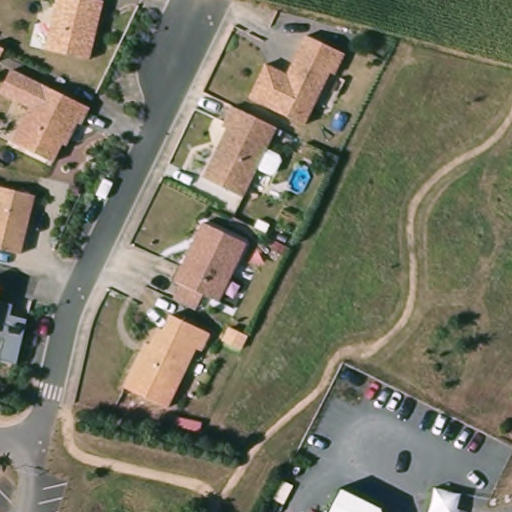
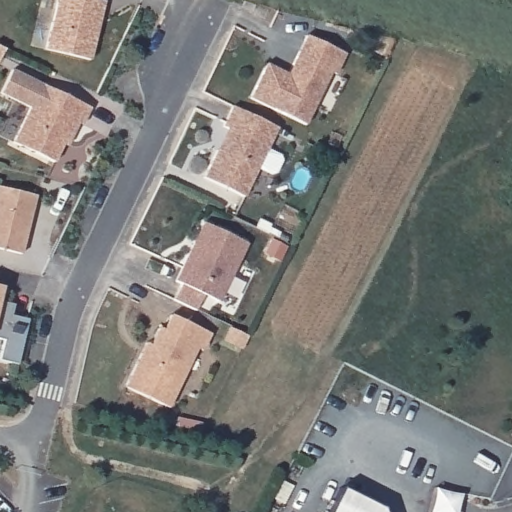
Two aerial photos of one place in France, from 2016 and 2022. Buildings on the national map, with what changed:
unchanged [(100,1),(110,3),(105,23),(95,61),(51,51),(64,0),(100,0),(100,1)]
unchanged [(350,57),(341,77),(336,75),(311,128),(256,100),(272,67),(293,77),(312,39),(350,57)]
unchanged [(0,94),(11,71),(41,85),(30,107),(0,94)]
unchanged [(81,126),(74,123),(54,164),(11,143),(41,85),(89,107),(81,126)]
unchanged [(281,174),(276,176),(264,170),(249,199),(210,179),(223,152),(233,131),(229,128),(231,124),(238,108),(283,130),(272,152),(285,158),(287,162),(281,174)]
unchanged [(40,198),(26,256),(0,250),(0,197),(2,188),(40,198)]
unchanged [(192,309),(178,302),(186,286),(181,284),(209,225),(252,246),(224,304),(209,297),(201,313),(192,309)]
unchanged [(1,288),(0,296),(0,288),(1,288)]
unchanged [(13,303),(13,315),(26,317),(16,364),(0,360),(4,342),(0,341),(0,301),(13,303)]
unchanged [(168,333),(176,318),(215,337),(207,353),(202,350),(173,410),(130,389),(146,356),(151,346),(155,348),(164,331),(168,333)]

